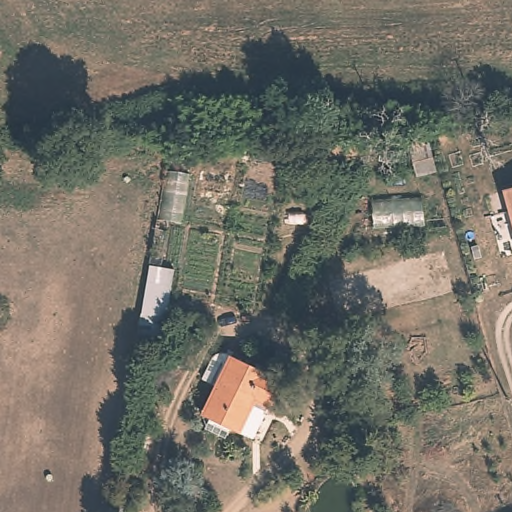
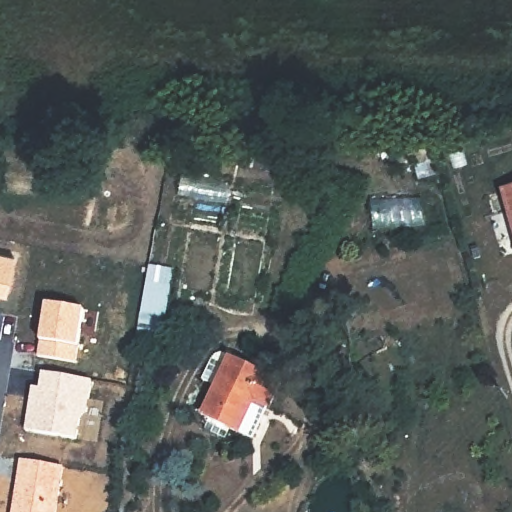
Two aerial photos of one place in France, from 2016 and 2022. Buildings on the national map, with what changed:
unchanged [(512,193),(512,202),(510,194),(512,193)]
new [(15,256),(5,299),(0,298),(0,254),(15,256)]
unchanged [(175,266),(160,351),(135,347),(147,262),(175,266)]
new [(40,341),(45,303),(85,309),(80,347),(77,365),(38,358),(40,341)]
unchanged [(207,374),(220,350),(226,348),(271,369),(268,376),(283,384),(272,408),(267,406),(248,438),(202,416),(220,380),(207,374)]
new [(31,387),(40,388),(42,373),(92,381),(87,414),(80,420),(77,440),(25,431),(31,387)]
new [(15,493),(20,495),(25,465),(65,471),(59,512),(12,512),(15,493)]

